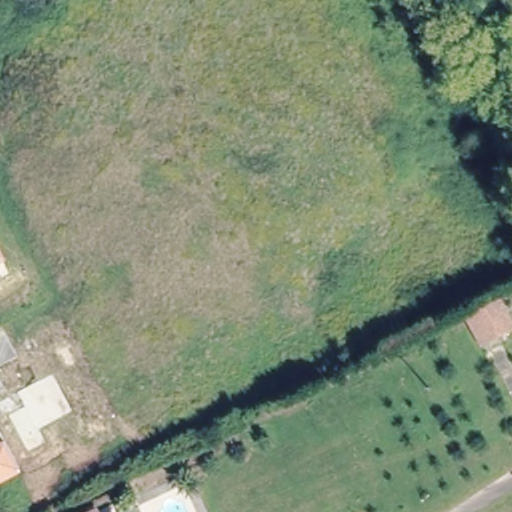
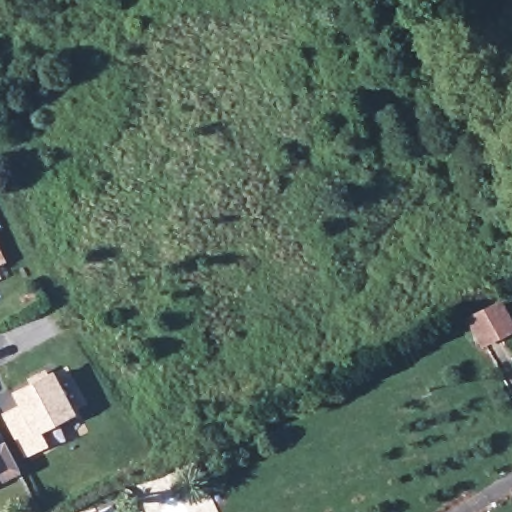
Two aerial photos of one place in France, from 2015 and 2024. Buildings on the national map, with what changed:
unchanged [(6,260),(0,264),(0,249),(6,260)]
unchanged [(504,303),(512,319),(512,325),(506,328),(482,341),(471,320),(495,307),(504,303)]
new [(77,411),(42,430),(49,445),(25,457),(2,413),(20,404),(12,389),(55,368),(77,411)]
unchanged [(4,441),(21,473),(0,484),(0,443),(4,441)]
unchanged [(95,510),(96,512),(92,512),(95,510)]

